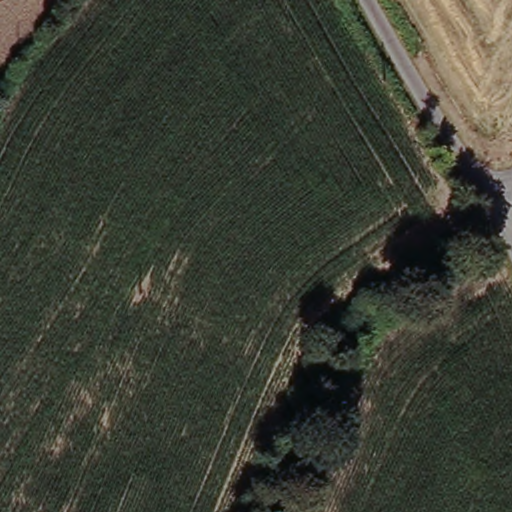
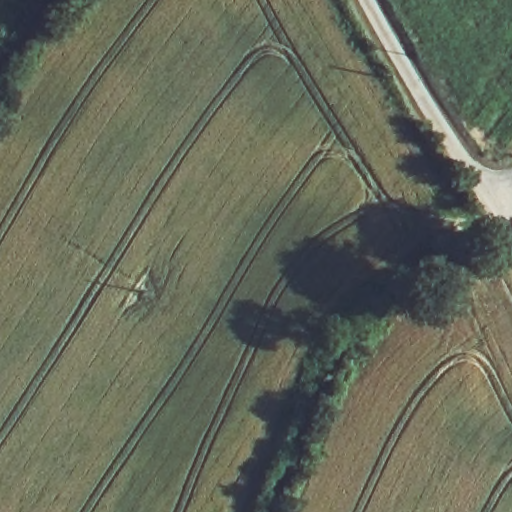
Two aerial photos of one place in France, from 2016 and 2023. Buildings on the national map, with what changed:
[]

